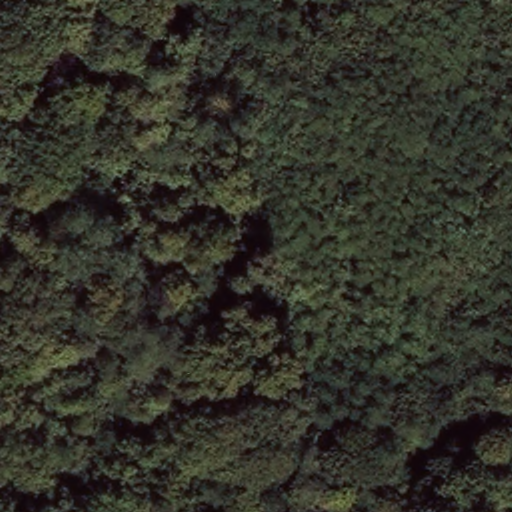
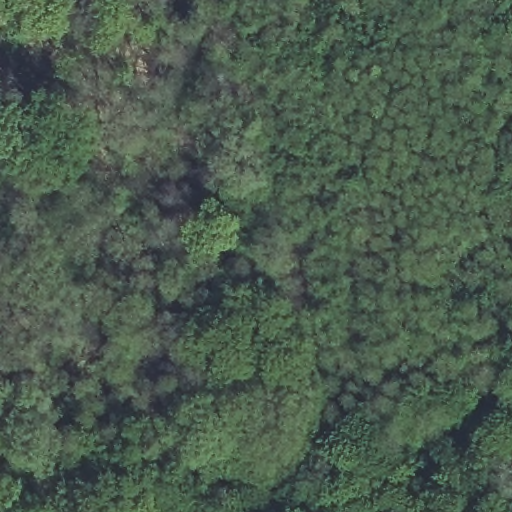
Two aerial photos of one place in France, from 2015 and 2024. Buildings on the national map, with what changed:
[]

